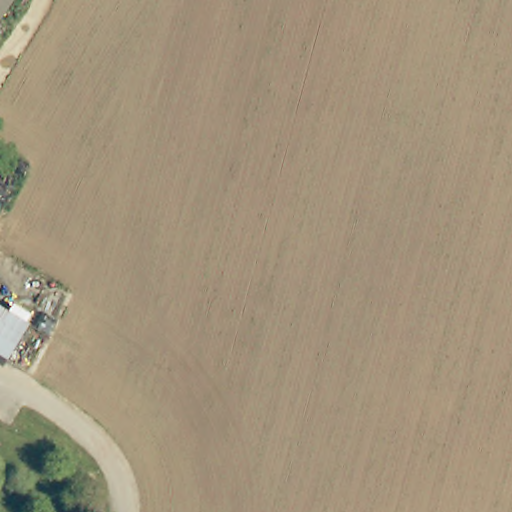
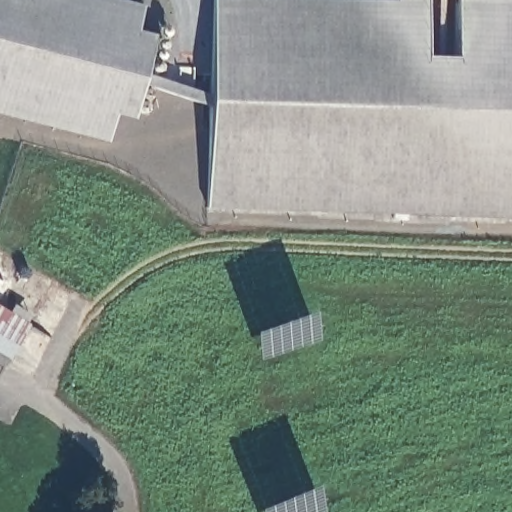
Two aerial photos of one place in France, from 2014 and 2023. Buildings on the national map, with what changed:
demolished [(0,0),(11,0),(0,16),(0,0)]
new [(137,29),(169,39),(143,120),(134,118),(116,113),(109,140),(0,113),(0,0),(128,0),(144,4),(137,29)]
new [(207,206),(214,0),(512,0),(512,216),(207,206)]
unchanged [(0,360),(0,318),(21,330),(3,361),(0,360)]

